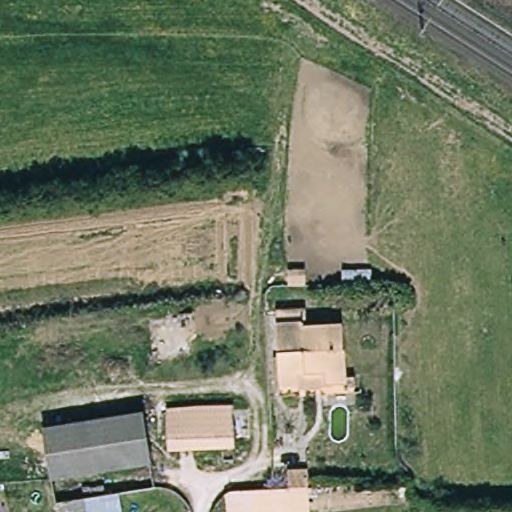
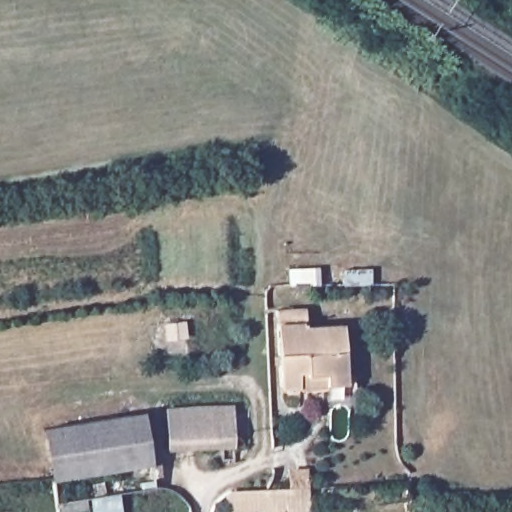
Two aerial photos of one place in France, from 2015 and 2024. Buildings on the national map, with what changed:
unchanged [(280,327),(307,326),(307,330),(348,328),(351,387),(329,388),(329,376),(307,377),(308,372),(304,371),(303,391),(283,390),(280,327)]
unchanged [(233,406),(234,443),(167,447),(166,407),(233,406)]
unchanged [(54,471),(46,432),(145,412),(152,465),(56,479),(54,471)]
unchanged [(293,468),(312,467),(312,489),(294,489),(293,468)]
unchanged [(310,490),(310,512),(230,512),(229,494),(237,493),(310,490)]
unchanged [(88,503),(90,512),(88,512),(60,512),(60,510),(88,503)]

